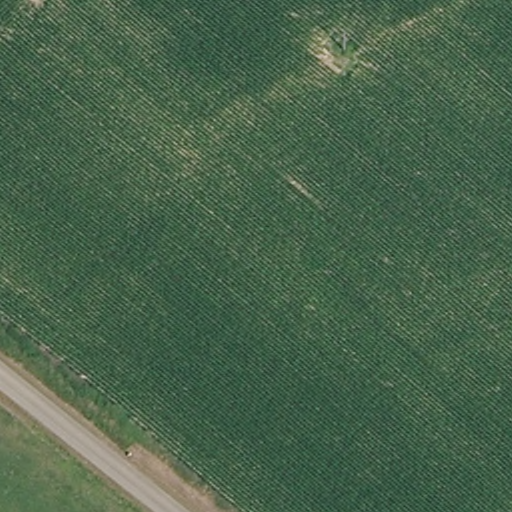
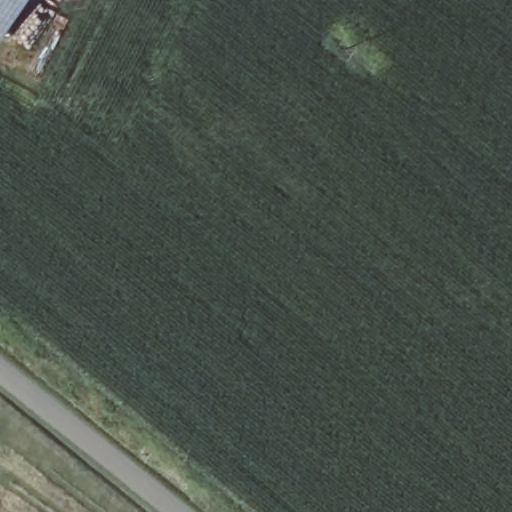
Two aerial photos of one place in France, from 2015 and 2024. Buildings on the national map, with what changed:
new [(0,36),(0,0),(22,0),(0,36)]

